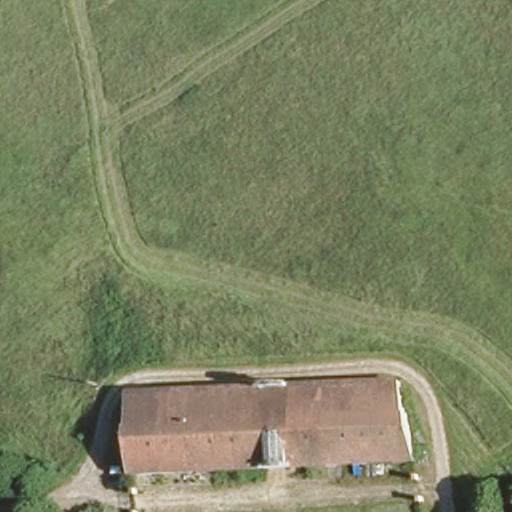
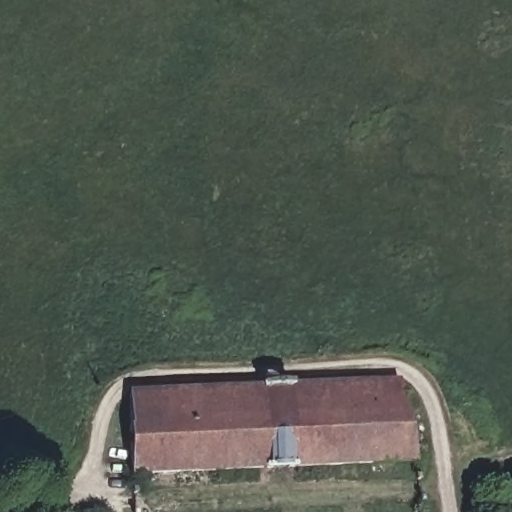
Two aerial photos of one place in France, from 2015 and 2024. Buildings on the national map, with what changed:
unchanged [(127,392),(226,388),(226,384),(299,381),(300,387),(401,383),(413,462),(134,472),(129,472),(126,425),(129,425),(127,392)]

